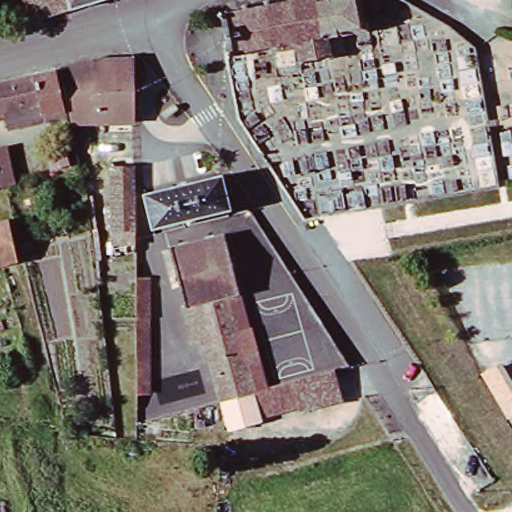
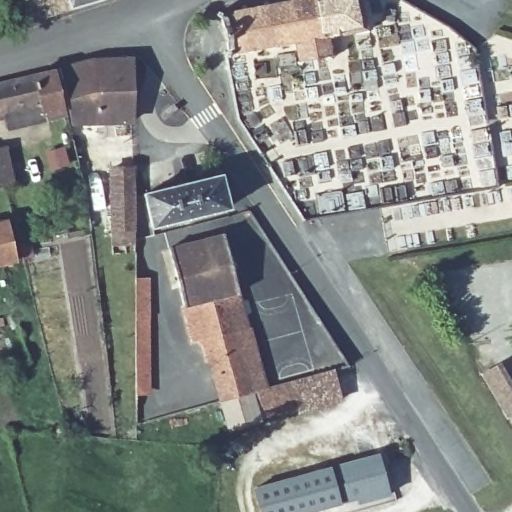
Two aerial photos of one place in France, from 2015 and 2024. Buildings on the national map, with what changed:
unchanged [(36,20),(29,0),(103,0),(36,20)]
unchanged [(358,25),(334,30),(336,50),(342,55),(338,62),(329,55),(309,59),(306,67),(299,65),(303,55),(300,38),(281,42),(283,48),(275,50),(273,44),(260,47),(261,54),(254,55),(252,48),(234,52),(229,21),(223,18),(220,12),(241,9),(241,2),(248,0),(249,7),(266,3),(266,0),(276,0),(277,2),(287,0),(361,0),(365,19),(371,18),(372,31),(360,33),(358,25)]
unchanged [(67,110),(58,71),(95,60),(98,122),(70,121),(67,110)]
unchanged [(137,61),(137,122),(98,122),(95,60),(137,61)]
unchanged [(11,112),(0,114),(0,84),(58,71),(67,110),(47,115),(14,125),(11,112)]
unchanged [(0,183),(0,148),(7,146),(16,179),(0,183)]
unchanged [(111,242),(110,216),(107,164),(131,164),(132,242),(111,242)]
unchanged [(158,222),(152,190),(226,177),(232,208),(158,222)]
unchanged [(10,219),(20,255),(0,260),(0,222),(10,219)]
unchanged [(207,334),(199,336),(175,241),(229,229),(256,338),(245,341),(250,364),(259,361),(266,389),(296,380),(338,369),(345,399),(304,410),(273,418),(232,428),(225,398),(207,334)]
unchanged [(134,345),(132,242),(146,243),(148,389),(134,390),(134,345)]
unchanged [(501,363),(512,381),(512,417),(506,421),(480,376),(501,363)]
new [(358,504),(357,500),(315,512),(257,512),(251,488),(378,452),(391,494),(358,504)]

